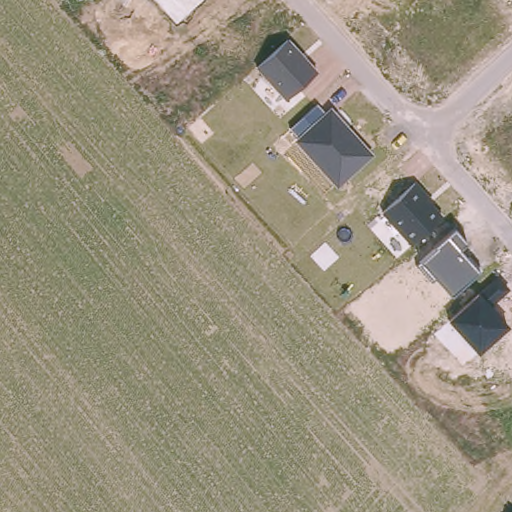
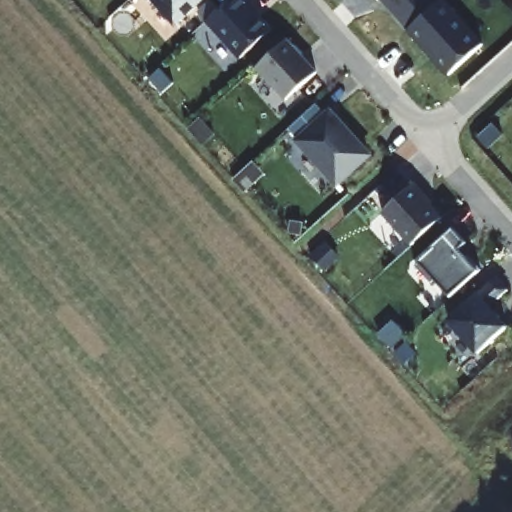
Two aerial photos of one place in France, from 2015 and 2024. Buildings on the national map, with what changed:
unchanged [(155,0),(204,0),(177,25),(155,0)]
new [(208,21),(233,0),(248,0),(271,29),(240,56),(208,21)]
new [(387,0),(442,0),(411,28),(387,0)]
new [(452,74),(411,28),(443,0),(447,0),(485,44),(452,74)]
unchanged [(283,100),(250,66),(280,36),(314,71),(283,100)]
unchanged [(336,186),(290,141),(325,106),(371,151),(336,186)]
unchanged [(439,210),(406,242),(373,209),(407,177),(439,210)]
unchanged [(466,241),(460,249),(481,271),(451,297),(415,259),(451,227),(466,241)]
unchanged [(507,290),(490,307),(510,328),(478,355),(448,321),(496,275),(507,290)]

